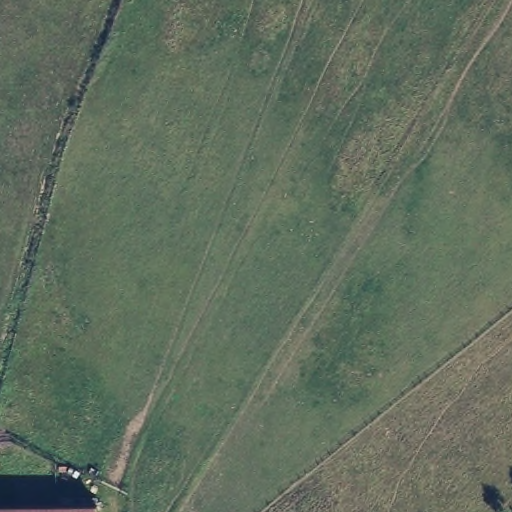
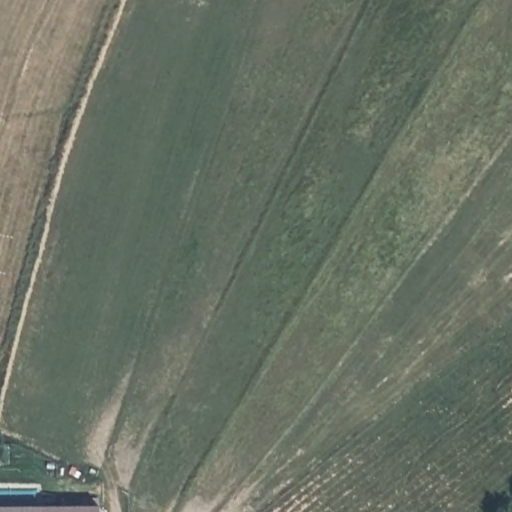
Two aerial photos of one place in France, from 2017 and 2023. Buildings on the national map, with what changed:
unchanged [(105,509),(104,512),(0,512),(0,509),(105,509)]

